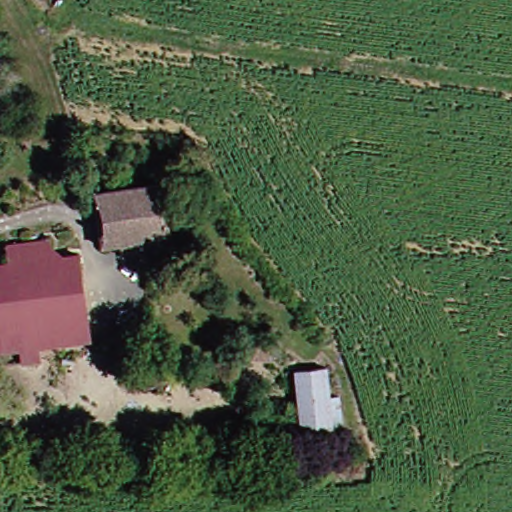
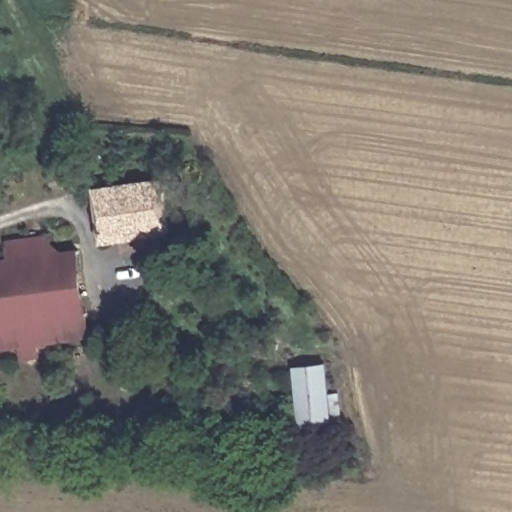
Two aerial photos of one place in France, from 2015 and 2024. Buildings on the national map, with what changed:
unchanged [(167,231),(103,236),(96,192),(160,184),(167,231)]
unchanged [(16,322),(1,321),(2,356),(0,356),(0,267),(8,266),(6,243),(55,236),(57,255),(71,353),(19,360),(16,322)]
unchanged [(71,353),(57,255),(82,253),(97,349),(71,353)]
unchanged [(329,414),(328,429),(313,427),(314,414),(296,414),(294,399),(280,400),(279,384),(293,383),(294,376),(339,373),(341,414),(329,414)]

